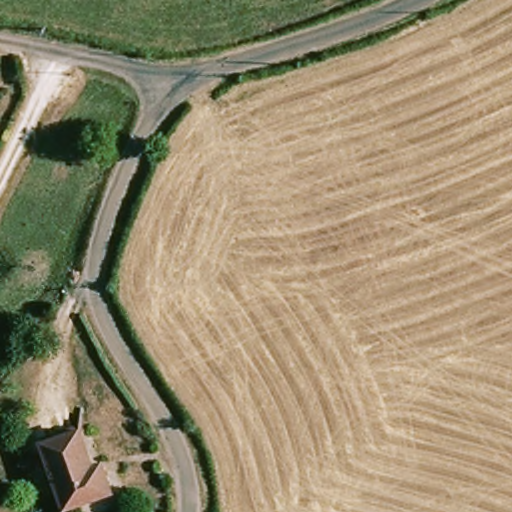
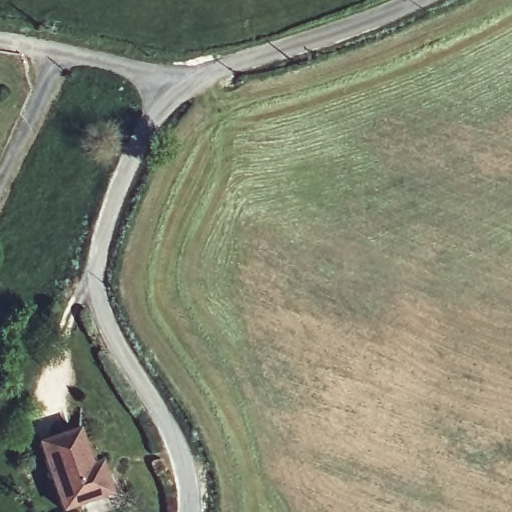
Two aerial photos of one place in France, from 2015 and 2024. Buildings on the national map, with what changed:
unchanged [(75,432),(92,473),(100,469),(111,495),(68,512),(65,512),(38,448),(75,432)]

